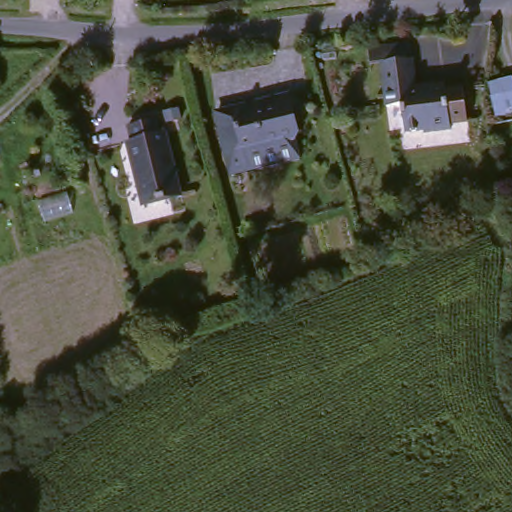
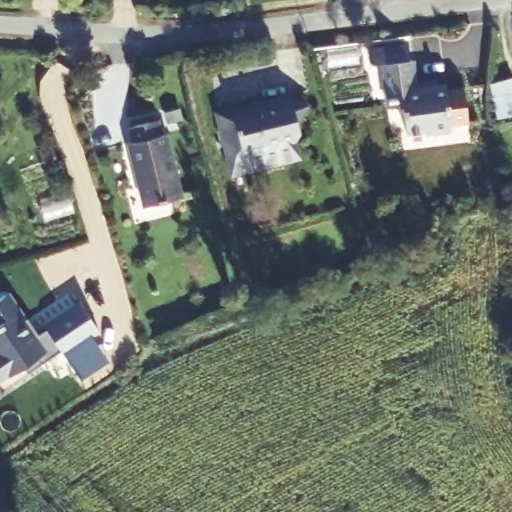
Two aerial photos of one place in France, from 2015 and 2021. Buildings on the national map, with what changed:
unchanged [(425,141),(425,136),(409,136),(406,106),(385,109),(383,66),(413,65),(413,87),(441,87),(443,93),(462,92),(463,128),(446,127),(446,138),(425,141)]
unchanged [(234,185),(220,120),(294,103),(310,115),(310,119),(300,133),(305,145),(298,154),(300,170),(234,185)]
unchanged [(149,208),(131,143),(140,141),(136,128),(165,120),(169,134),(173,134),(190,197),(149,208)]
new [(31,333),(40,328),(38,324),(73,300),(92,330),(55,353),(53,349),(18,371),(14,364),(0,373),(0,372),(0,290),(3,288),(31,333)]

